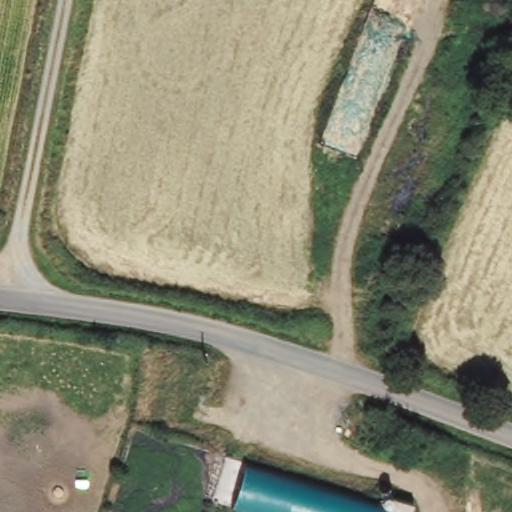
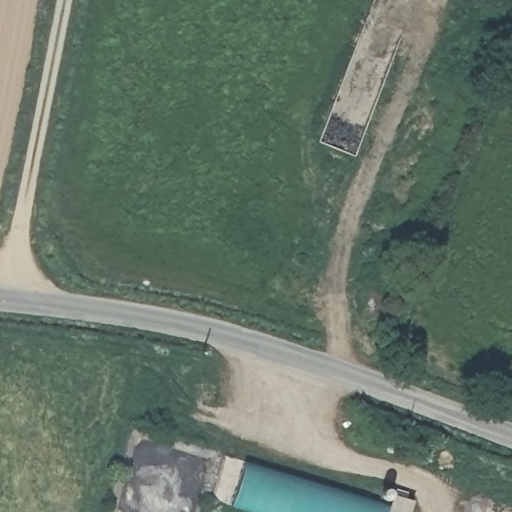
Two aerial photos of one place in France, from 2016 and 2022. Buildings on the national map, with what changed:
unchanged [(237,507),(250,462),(396,506),(399,498),(419,504),(417,512),(255,512),(237,507)]

